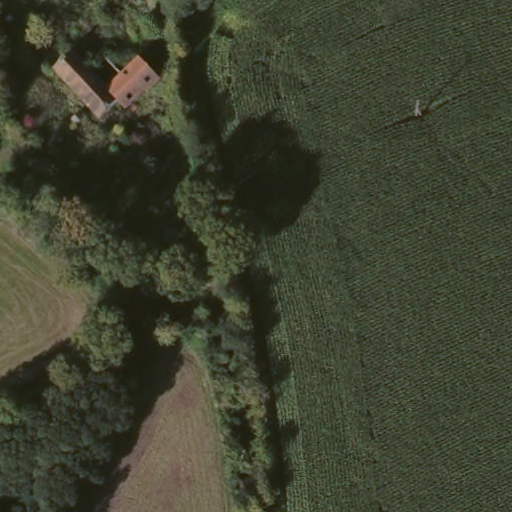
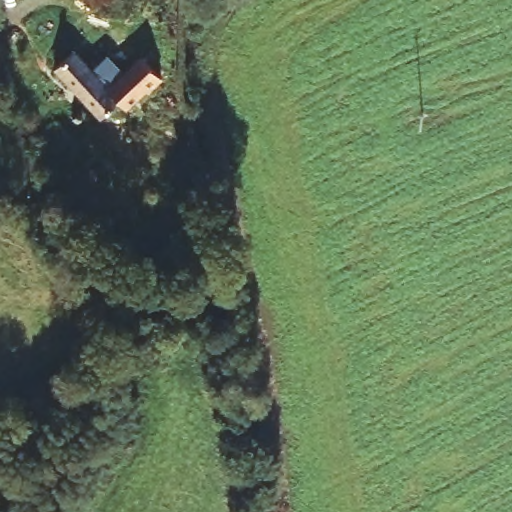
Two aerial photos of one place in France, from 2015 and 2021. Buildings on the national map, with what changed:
unchanged [(50,65),(63,54),(71,48),(87,66),(103,53),(106,58),(118,72),(137,56),(156,79),(141,91),(139,89),(118,106),(116,104),(113,100),(94,116),(93,115),(63,81),(50,65)]

